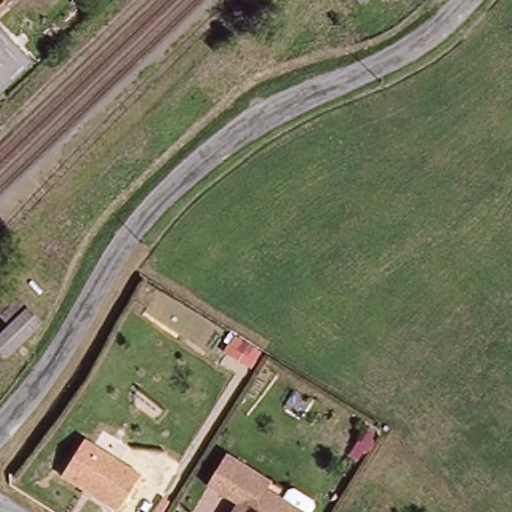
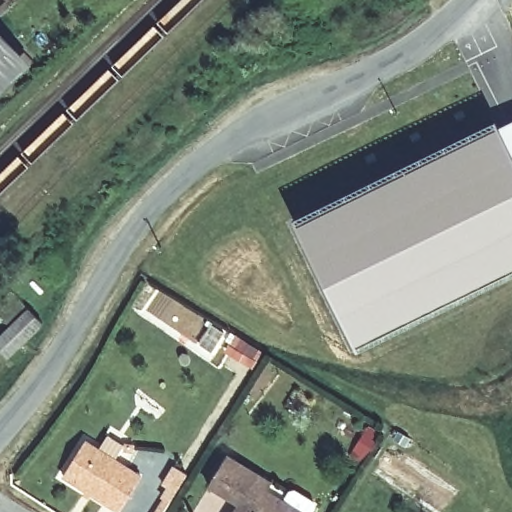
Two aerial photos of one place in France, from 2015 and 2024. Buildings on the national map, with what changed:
unchanged [(31,67),(0,95),(0,34),(31,67)]
new [(512,121),(512,273),(357,349),(293,219),(496,120),(500,127),(512,121)]
unchanged [(12,325),(0,311),(0,301),(14,286),(46,323),(7,359),(0,354),(0,338),(12,325)]
new [(226,352),(235,337),(260,353),(250,367),(242,363),(236,373),(221,363),(227,353),(226,352)]
unchanged [(71,477),(94,441),(149,476),(127,511),(71,477)]
unchanged [(210,489),(230,458),(273,486),(269,493),(300,512),(239,512),(241,508),(210,489)]

